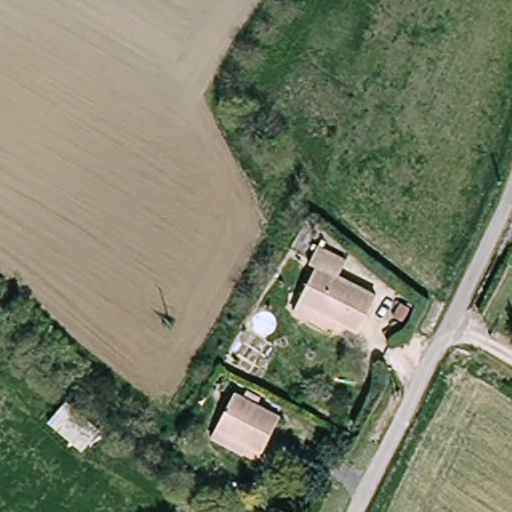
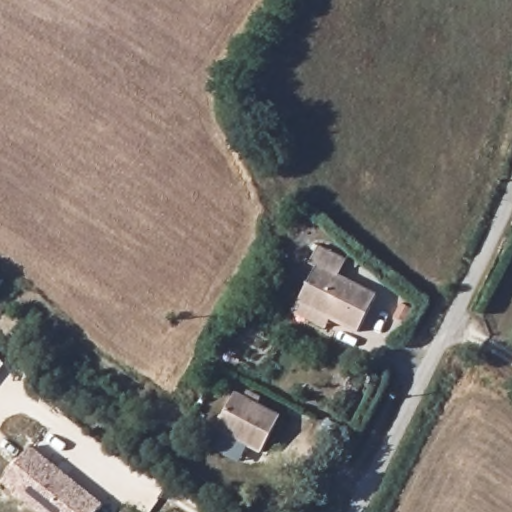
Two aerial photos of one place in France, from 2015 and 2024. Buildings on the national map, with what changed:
unchanged [(312,265),(305,260),(315,242),(345,259),(336,275),(374,296),(353,334),(293,301),(312,265)]
new [(6,363),(0,371),(0,359),(6,363)]
unchanged [(207,437),(211,430),(229,393),(276,415),(260,452),(243,445),(240,452),(207,437)]
demolished [(65,400),(100,429),(80,455),(46,426),(65,400)]
new [(35,512),(0,484),(30,446),(103,504),(97,512),(35,512)]

